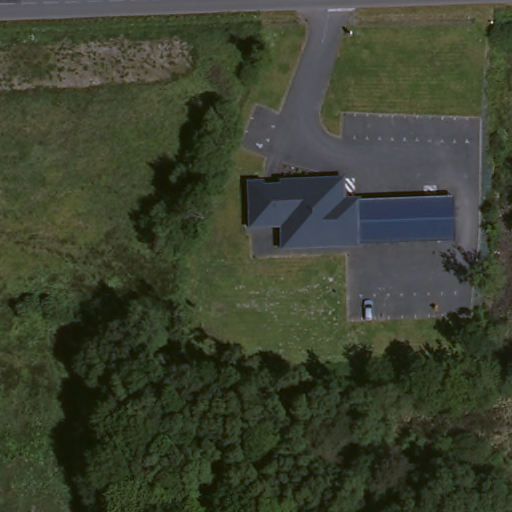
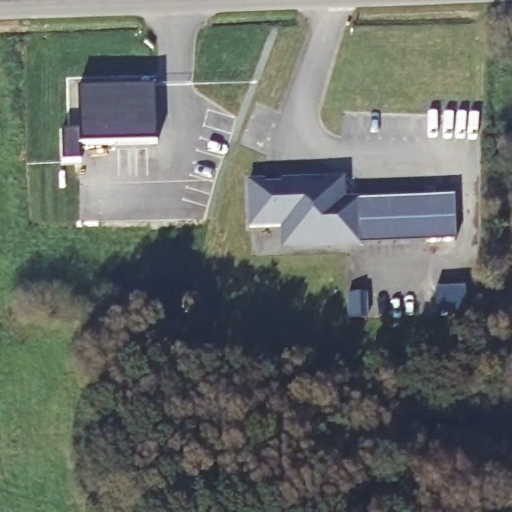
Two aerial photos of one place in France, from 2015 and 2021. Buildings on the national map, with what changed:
new [(157,143),(80,146),(79,90),(155,88),(157,143)]
unchanged [(455,241),(362,244),(362,248),(281,250),(280,229),(250,229),(250,184),(277,182),(279,179),(345,177),(348,200),(453,196),(455,241)]

